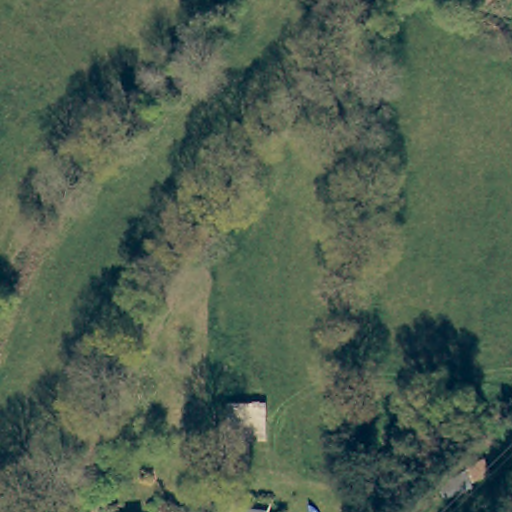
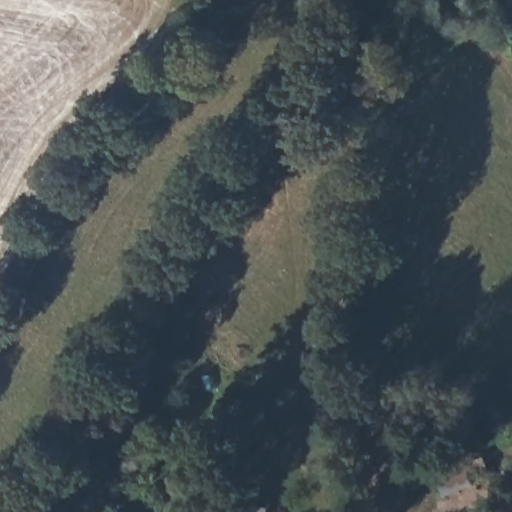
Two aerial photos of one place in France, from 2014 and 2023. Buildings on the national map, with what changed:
unchanged [(223,428),(224,400),(264,400),(264,428),(223,428)]
unchanged [(248,496),(276,500),(275,507),(285,508),(285,512),(246,512),(248,496)]

